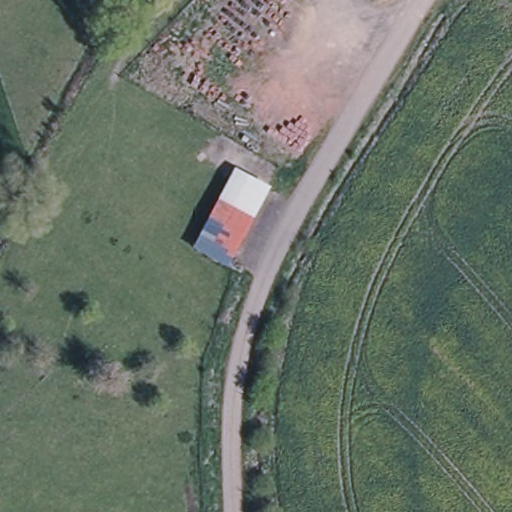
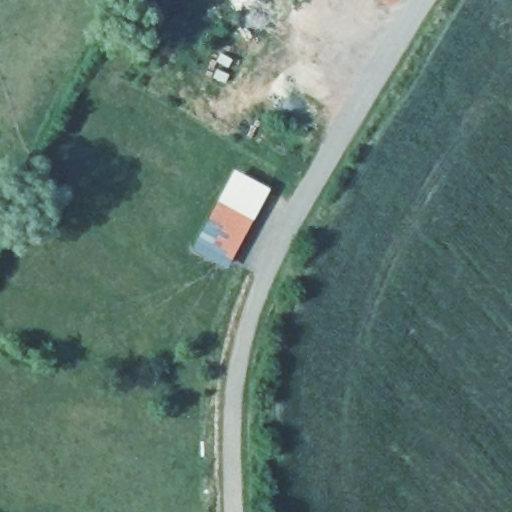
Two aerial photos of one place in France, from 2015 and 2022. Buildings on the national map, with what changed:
unchanged [(226,269),(192,248),(233,170),(269,189),(226,269)]

